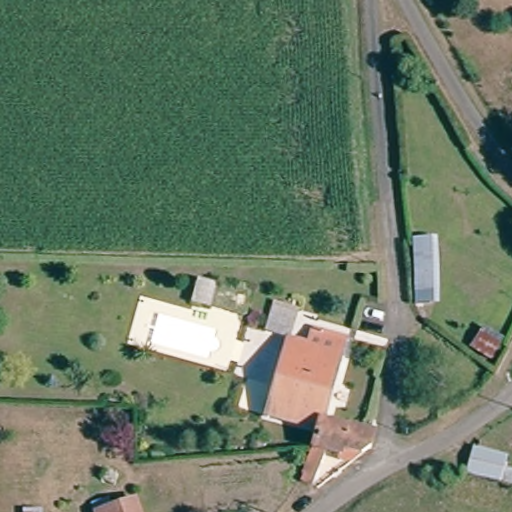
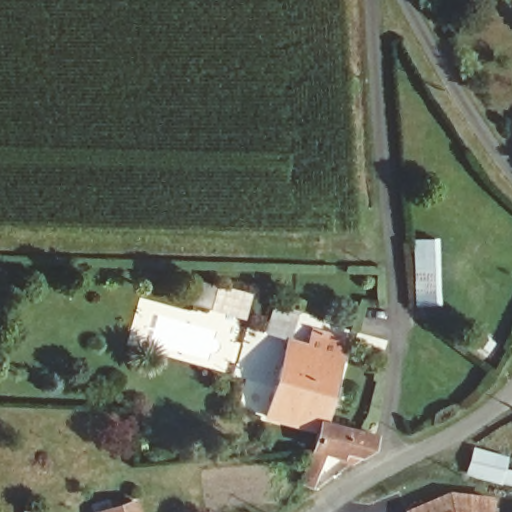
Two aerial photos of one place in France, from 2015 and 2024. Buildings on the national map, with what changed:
unchanged [(412,204),(435,204),(436,248),(439,310),(417,311),(413,249),(412,204)]
unchanged [(209,308),(194,303),(199,284),(214,288),(209,308)]
unchanged [(267,412),(290,336),(309,341),(313,325),(346,334),(324,418),(321,417),(319,426),(267,412)]
unchanged [(481,332),(502,346),(492,362),(470,348),(481,332)]
unchanged [(360,451),(344,447),(343,452),(326,448),(313,484),(305,480),(308,473),(305,472),(314,444),(319,426),(321,417),(324,418),(374,430),(360,451)]
unchanged [(505,486),(469,477),(476,450),(512,459),(505,486)]
new [(406,511),(449,492),(493,498),(491,512),(406,512),(406,511)]
unchanged [(101,511),(99,503),(114,497),(116,505),(141,497),(147,512),(101,512),(101,511)]

